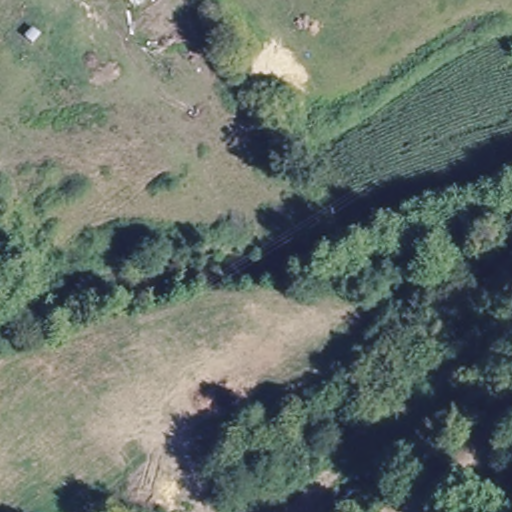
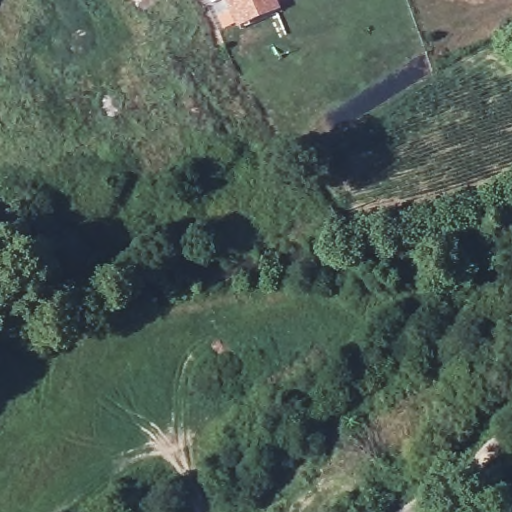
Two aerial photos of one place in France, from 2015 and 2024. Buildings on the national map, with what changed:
new [(281,13),(236,29),(224,0),(276,0),(281,13)]

